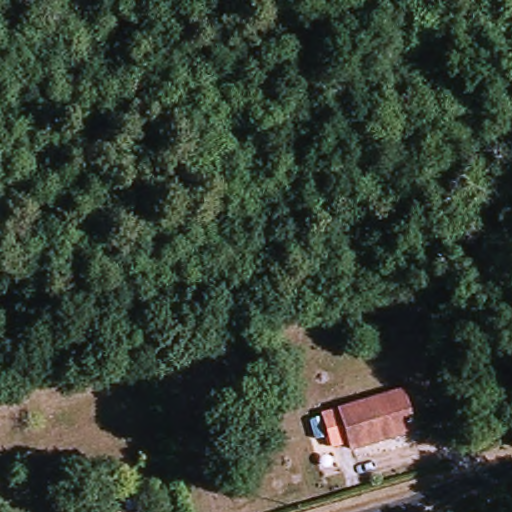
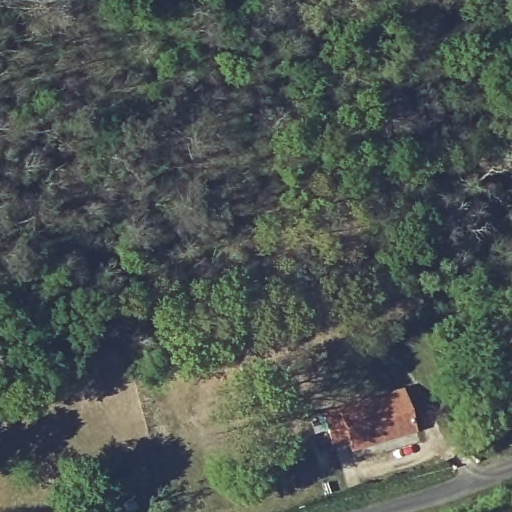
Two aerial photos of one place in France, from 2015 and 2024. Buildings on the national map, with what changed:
unchanged [(402,387),(415,425),(348,446),(343,432),(326,436),(319,413),(402,387)]

